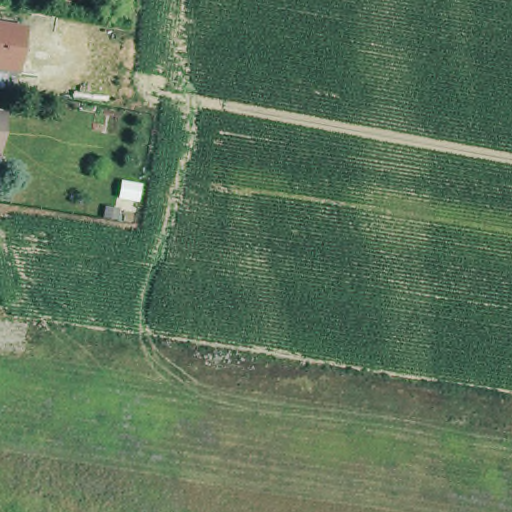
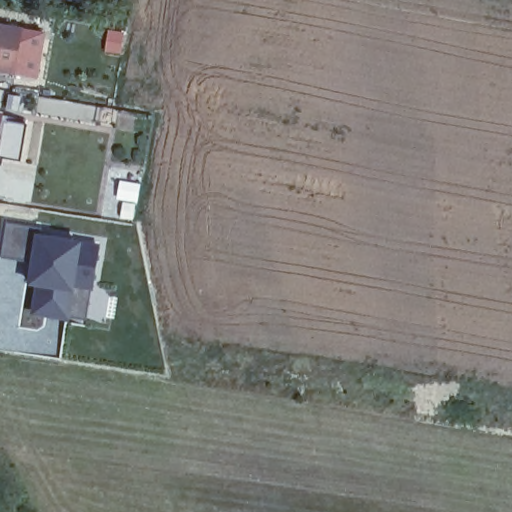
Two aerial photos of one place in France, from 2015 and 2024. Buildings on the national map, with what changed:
unchanged [(0,74),(0,23),(27,28),(17,77),(0,74)]
demolished [(0,105),(10,106),(4,142),(3,149),(0,148),(0,105)]
unchanged [(0,132),(0,118),(2,118),(0,132)]
new [(70,317),(68,322),(31,316),(37,287),(26,285),(30,263),(2,259),(8,225),(46,230),(45,236),(80,242),(100,245),(88,320),(70,317)]

